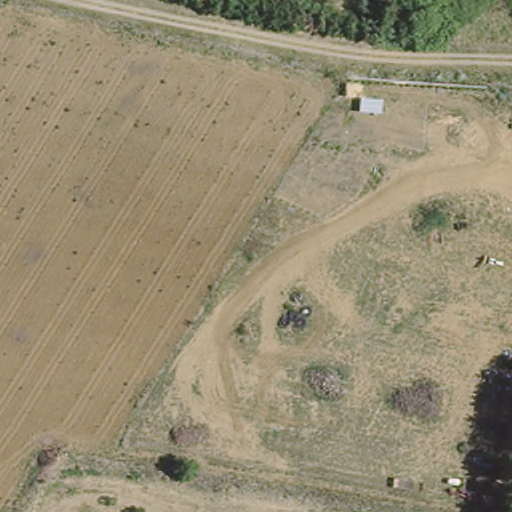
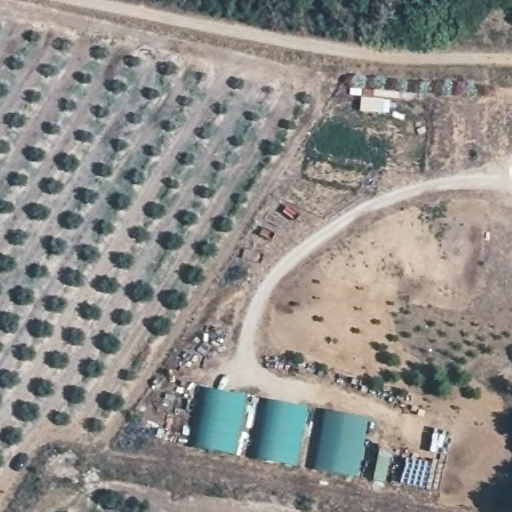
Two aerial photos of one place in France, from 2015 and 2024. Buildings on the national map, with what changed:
unchanged [(250,0),(252,0),(252,1),(250,0)]
new [(236,455),(192,447),(203,388),(248,397),(236,455)]
new [(299,467),(254,459),(264,400),(311,408),(299,467)]
new [(358,478),(314,468),(326,411),(372,420),(358,478)]

